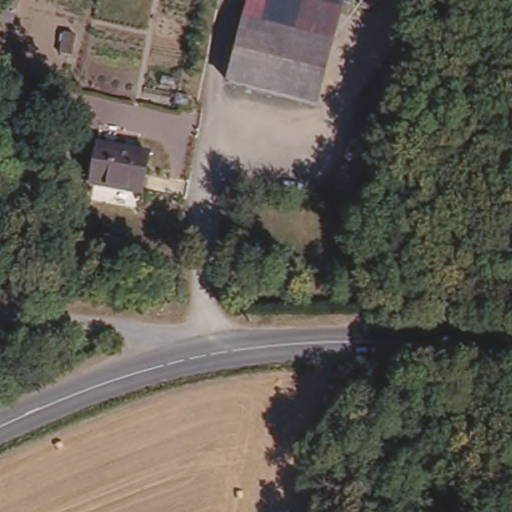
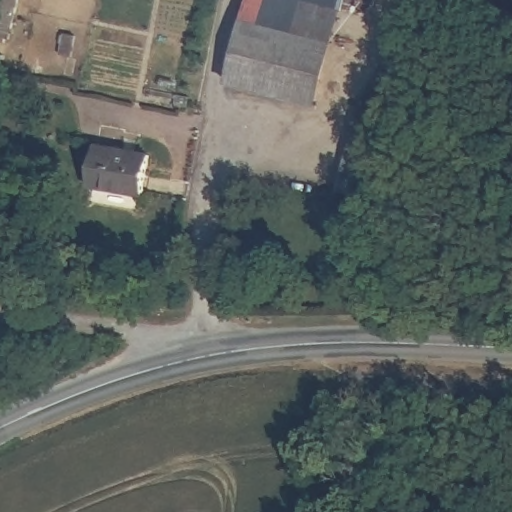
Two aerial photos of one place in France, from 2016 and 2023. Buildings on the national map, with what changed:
unchanged [(0,15),(0,0),(4,0),(0,15)]
unchanged [(317,104),(231,80),(252,0),(346,0),(317,104)]
unchanged [(375,121),(355,193),(323,185),(343,112),(375,121)]
unchanged [(146,150),(137,189),(86,178),(96,138),(146,150)]

